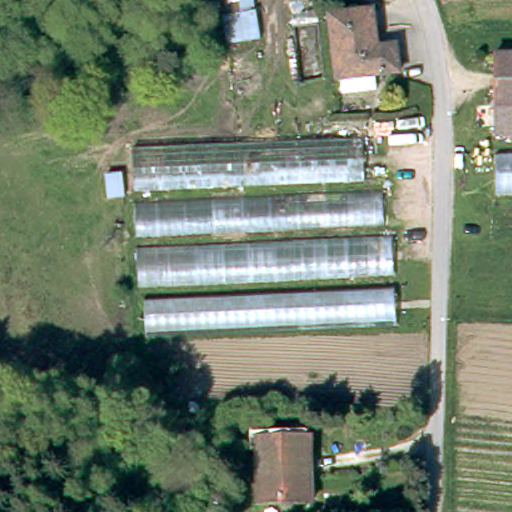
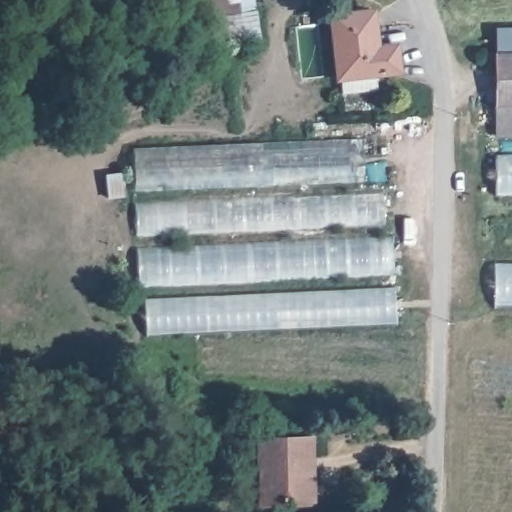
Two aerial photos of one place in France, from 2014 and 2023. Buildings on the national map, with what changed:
unchanged [(333,84),(332,67),(330,5),(372,2),(374,44),(394,43),(394,65),(368,66),(369,82),(333,84)]
unchanged [(256,7),(261,36),(219,41),(217,13),(256,7)]
unchanged [(496,53),(512,52),(512,103),(500,104),(496,53)]
unchanged [(497,137),(500,104),(512,103),(512,137),(497,137)]
unchanged [(163,170),(128,170),(129,126),(166,127),(163,170)]
unchanged [(166,127),(356,131),(355,174),(163,170),(166,127)]
unchanged [(512,155),(512,193),(496,194),(496,155),(512,155)]
unchanged [(132,195),(388,187),(390,216),(134,226),(132,195)]
unchanged [(137,246),(394,234),(397,265),(140,272),(137,246)]
new [(494,260),(512,261),(512,305),(494,305),(494,260)]
unchanged [(144,295),(397,283),(398,310),(144,321),(144,295)]
unchanged [(307,508),(254,507),(257,437),(270,437),(271,415),(311,415),(307,508)]

